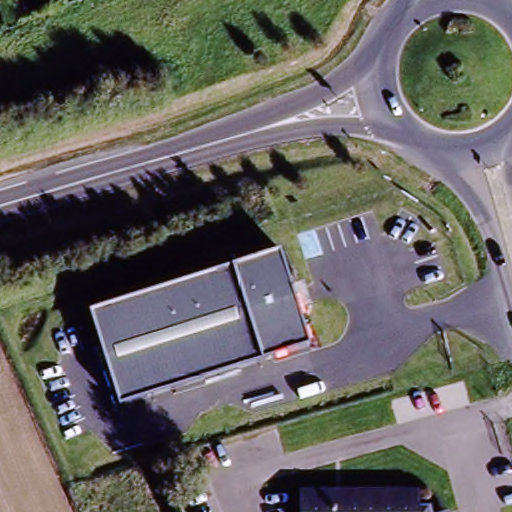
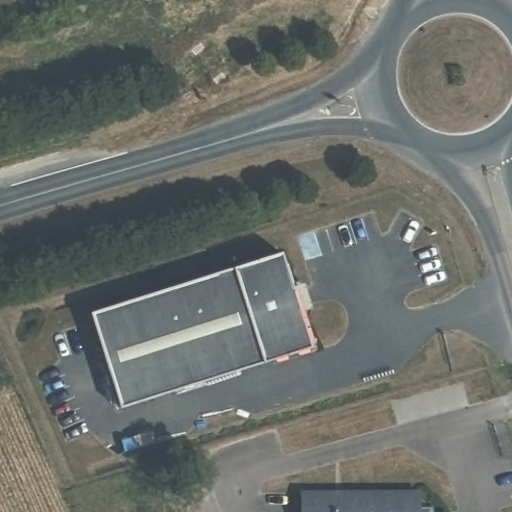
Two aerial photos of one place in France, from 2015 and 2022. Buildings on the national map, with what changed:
unchanged [(232,267),(279,253),(309,347),(261,362),(120,406),(89,312),(232,267)]
unchanged [(413,493),(413,509),(423,509),(424,512),(296,512),(296,494),(413,493)]

